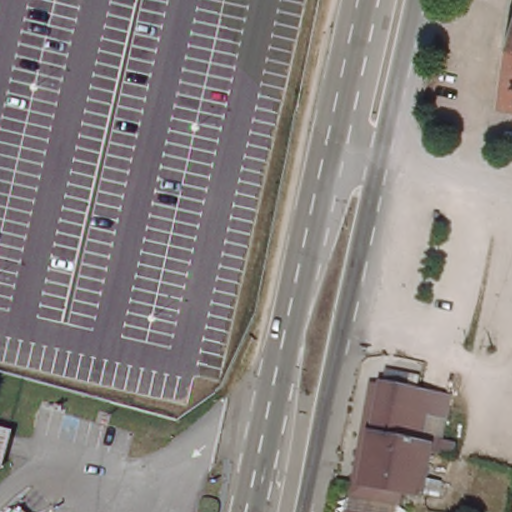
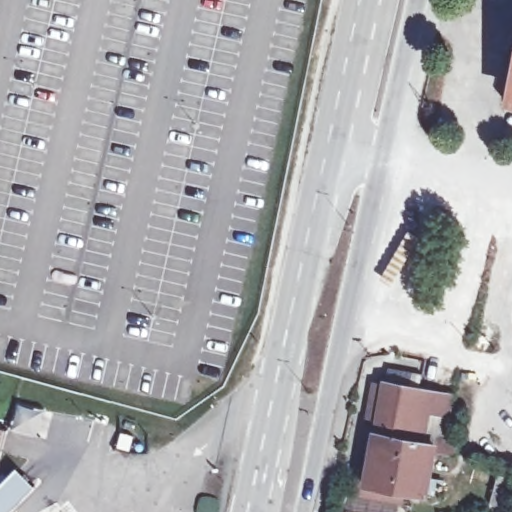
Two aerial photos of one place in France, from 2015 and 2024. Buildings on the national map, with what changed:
unchanged [(498,97),(512,38),(512,101),(498,97)]
unchanged [(439,442),(455,445),(452,459),(433,456),(422,498),(363,485),(383,386),(387,367),(422,375),(420,393),(450,400),(439,442)]
unchanged [(0,462),(0,430),(8,432),(0,462)]
new [(35,486),(10,512),(0,512),(0,487),(17,469),(35,486)]

